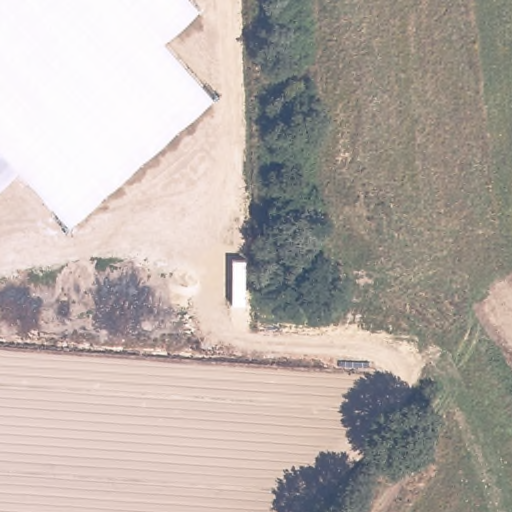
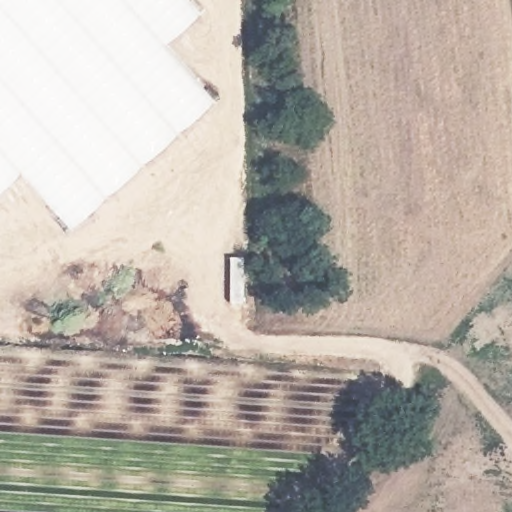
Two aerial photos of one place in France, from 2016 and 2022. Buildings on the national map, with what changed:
unchanged [(163,40),(213,99),(72,225),(20,170),(0,187),(0,0),(188,0),(198,10),(163,40)]

